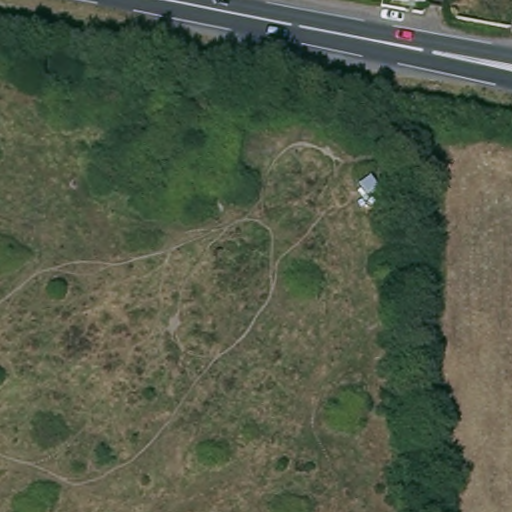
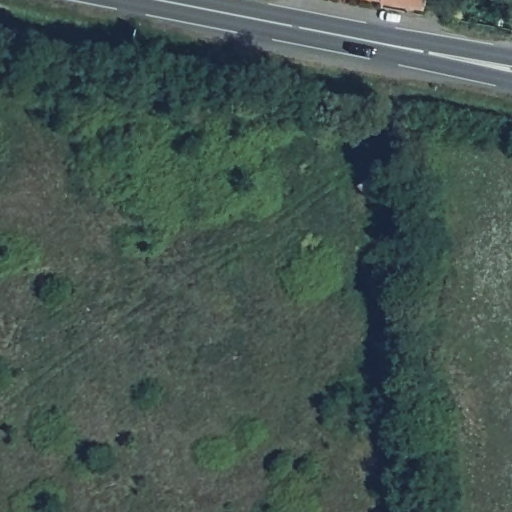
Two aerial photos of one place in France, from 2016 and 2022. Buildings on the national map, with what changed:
unchanged [(387,0),(386,6),(338,0),(387,0)]
unchanged [(386,6),(387,0),(429,0),(427,12),(386,6)]

